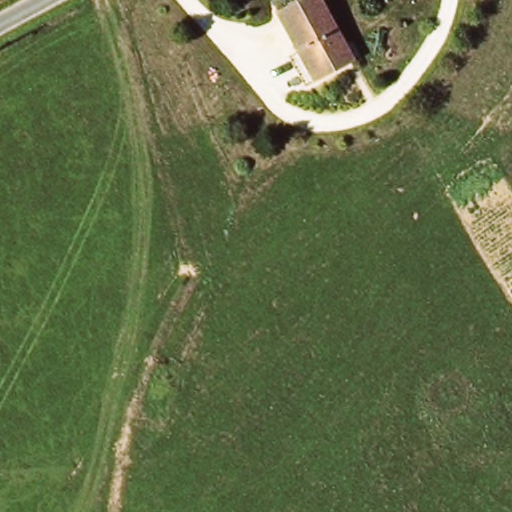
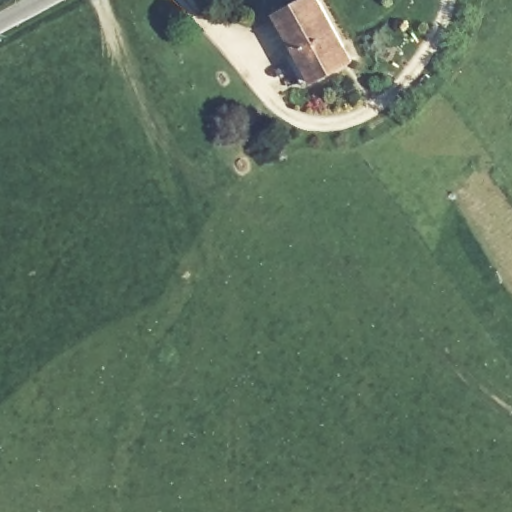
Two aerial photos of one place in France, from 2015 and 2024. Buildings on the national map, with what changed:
unchanged [(289,57),(297,52),(277,12),(299,0),(321,0),(346,48),(353,62),(341,69),(314,84),(305,87),(289,57)]

